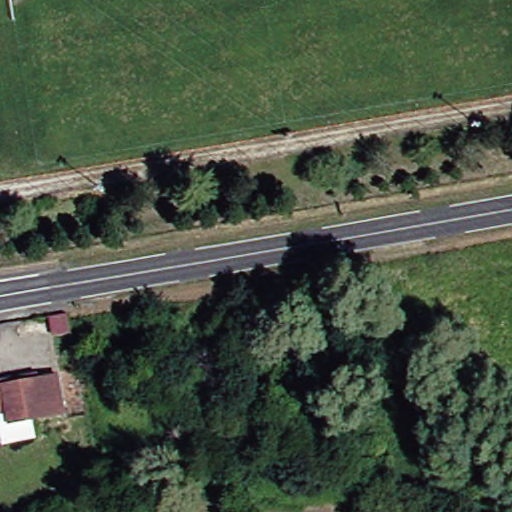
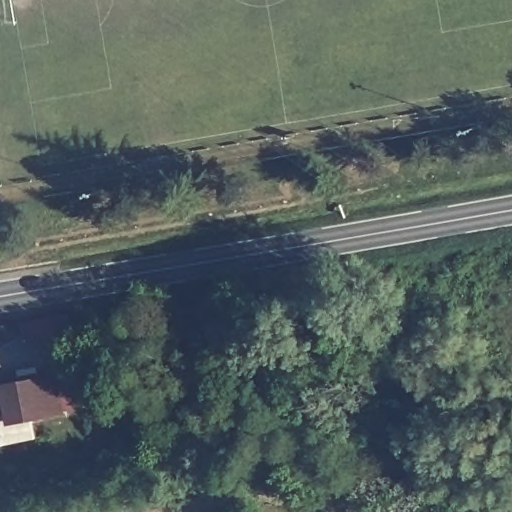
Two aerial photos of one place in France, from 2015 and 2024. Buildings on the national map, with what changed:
unchanged [(10,412),(0,415),(0,385),(25,379),(27,387),(62,379),(69,411),(15,424),(10,412)]

